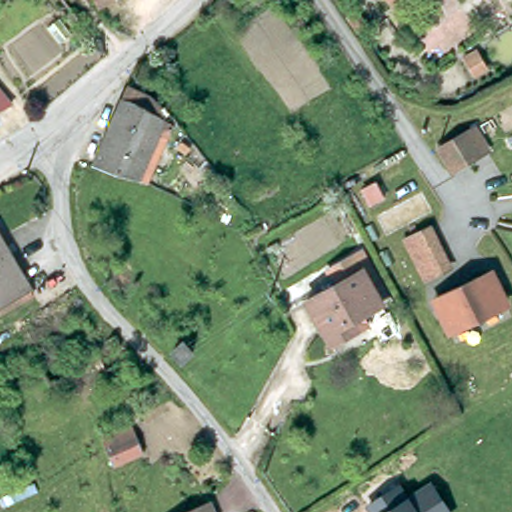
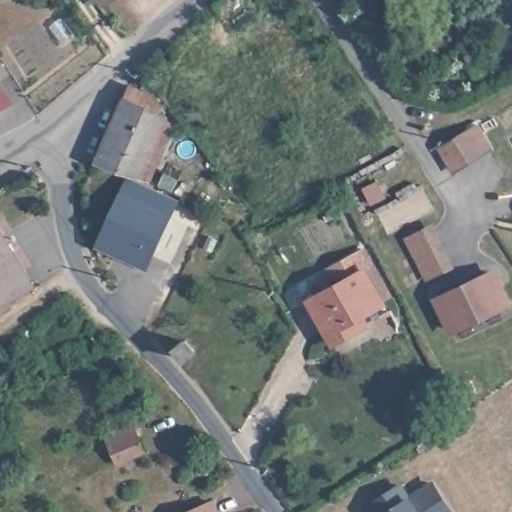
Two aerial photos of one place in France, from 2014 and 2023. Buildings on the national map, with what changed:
unchanged [(104,0),(101,1),(101,0),(104,0)]
unchanged [(0,106),(0,76),(15,95),(0,106)]
unchanged [(131,175),(90,158),(125,95),(131,84),(148,92),(156,101),(150,110),(159,119),(143,150),(155,155),(145,180),(131,175)]
unchanged [(485,153),(455,166),(445,145),(475,131),(485,153)]
new [(171,216),(146,271),(95,248),(120,192),(171,216)]
unchanged [(432,225),(433,225),(453,270),(426,283),(405,240),(432,225)]
unchanged [(0,300),(0,236),(26,286),(0,300)]
unchanged [(355,320),(359,327),(330,342),(308,300),(341,282),(335,269),(333,267),(357,255),(358,258),(365,270),(383,305),(355,320)]
unchanged [(433,300),(495,268),(511,304),(450,337),(433,300)]
unchanged [(136,440),(141,453),(129,458),(123,445),(136,440)]
unchanged [(410,490),(432,477),(452,512),(370,512),(365,503),(401,480),(410,490)]
unchanged [(212,512),(193,512),(208,505),(212,512)]

